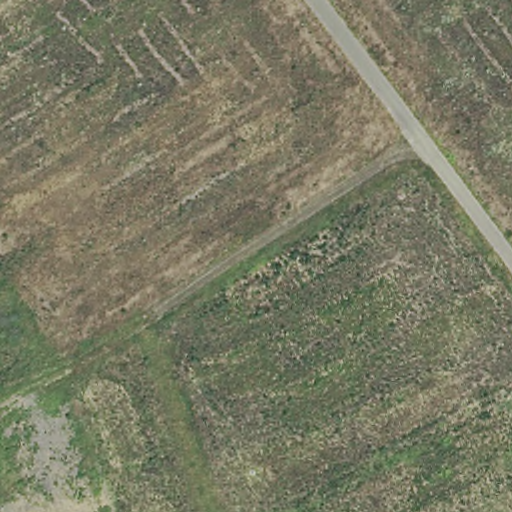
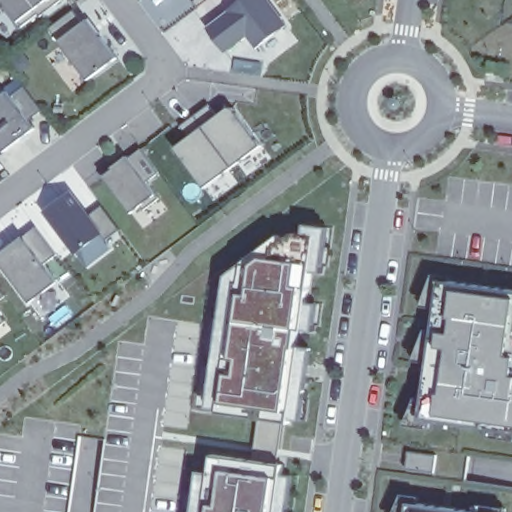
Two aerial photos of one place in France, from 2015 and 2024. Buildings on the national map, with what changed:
new [(42,18),(40,15),(21,29),(5,8),(8,6),(3,0),(66,0),(42,18)]
new [(196,3),(194,0),(200,0),(196,3)]
new [(286,26),(255,49),(246,38),(223,51),(206,26),(240,0),(264,0),(286,26)]
new [(85,24),(90,20),(91,19),(102,33),(100,34),(119,59),(90,81),(51,30),(75,12),(85,24)]
new [(9,92),(13,97),(26,87),(44,111),(31,121),(38,130),(6,153),(0,145),(0,100),(9,92)]
new [(256,149),(198,188),(168,149),(226,108),(256,149)]
new [(163,177),(151,186),(163,202),(148,214),(144,210),(135,217),(112,186),(114,184),(108,176),(115,170),(113,167),(114,167),(115,168),(129,157),(131,159),(143,150),(163,177)]
new [(122,231),(108,242),(103,236),(78,254),(48,212),(73,193),(90,217),(104,207),(122,231)]
new [(301,426),(287,424),(282,465),(256,461),(263,420),(216,414),(217,407),(208,406),(226,274),(240,268),(241,254),(275,226),(285,237),(294,230),(304,230),(304,223),(331,227),(301,426)]
new [(38,228),(59,256),(46,265),(58,281),(31,302),(0,261),(0,257),(14,246),(16,251),(28,242),(24,238),(38,228)]
new [(466,480),(512,487),(512,512),(505,512),(505,510),(402,495),(412,425),(406,424),(416,405),(422,361),(414,360),(427,330),(430,306),(422,305),(434,275),(450,277),(449,282),(512,291),(512,448),(471,443),(466,480)]
new [(8,297),(0,303),(0,288),(8,297)]
new [(7,323),(0,328),(0,313),(7,323)]
new [(211,472),(213,456),(256,461),(282,465),(288,465),(286,472),(296,474),(291,512),(191,512),(197,470),(211,472)]
new [(505,510),(505,512),(395,512),(402,495),(505,510)]

